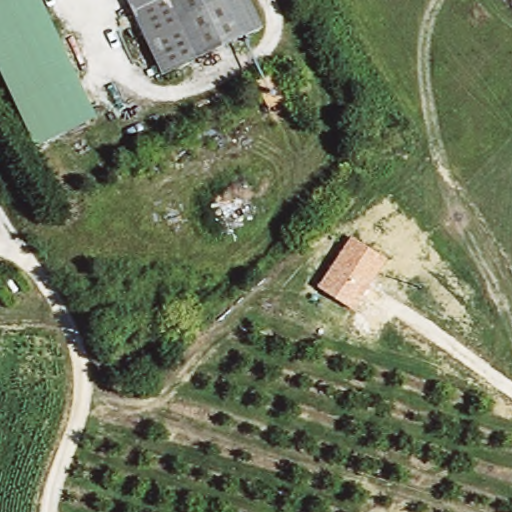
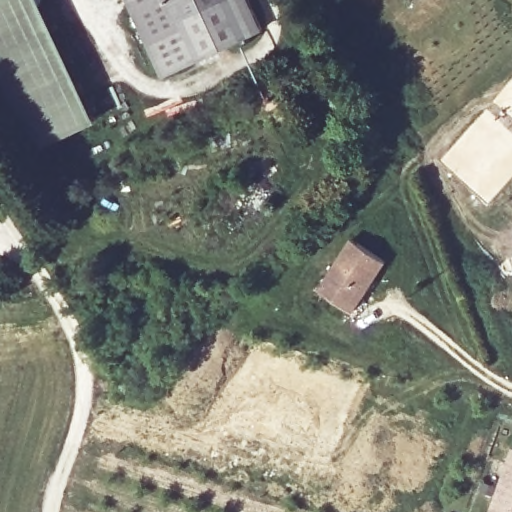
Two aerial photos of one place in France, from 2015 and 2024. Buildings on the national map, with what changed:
unchanged [(35,148),(0,77),(0,0),(32,0),(91,120),(35,148)]
unchanged [(265,28),(168,77),(129,0),(251,0),(265,28)]
unchanged [(388,261),(354,312),(318,288),(352,238),(388,261)]
new [(512,512),(492,512),(512,452),(512,512)]

